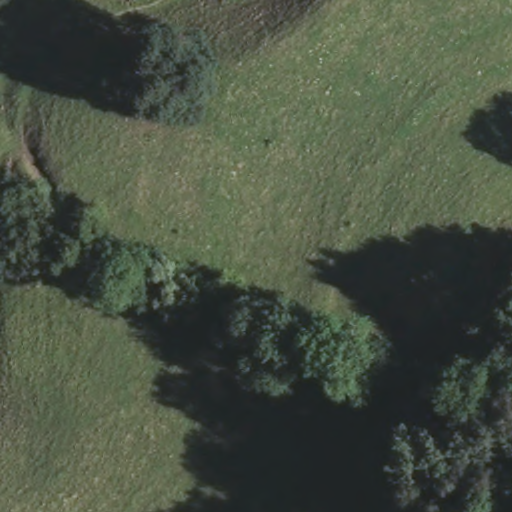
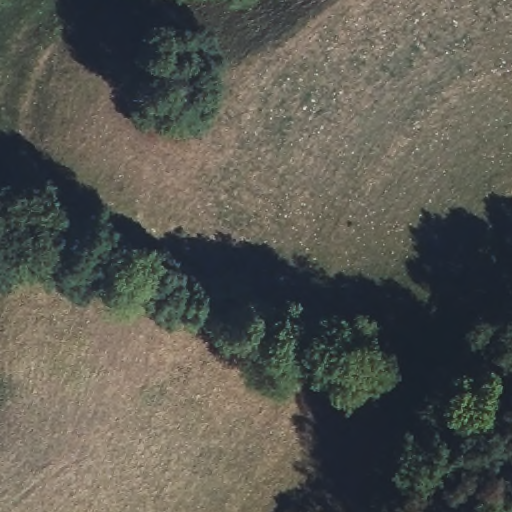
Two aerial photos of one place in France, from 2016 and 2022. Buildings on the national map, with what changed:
[]

